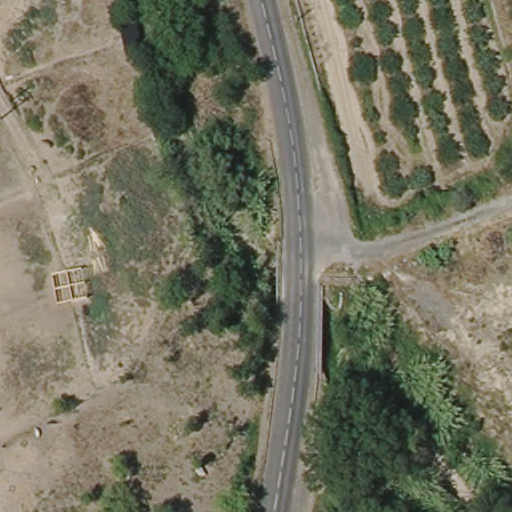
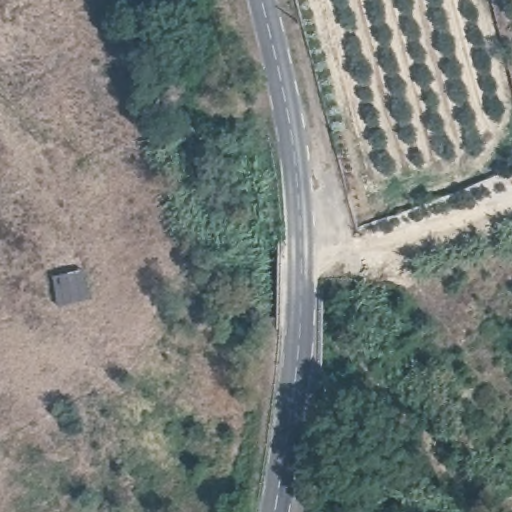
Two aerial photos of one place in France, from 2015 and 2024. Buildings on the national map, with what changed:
[]

